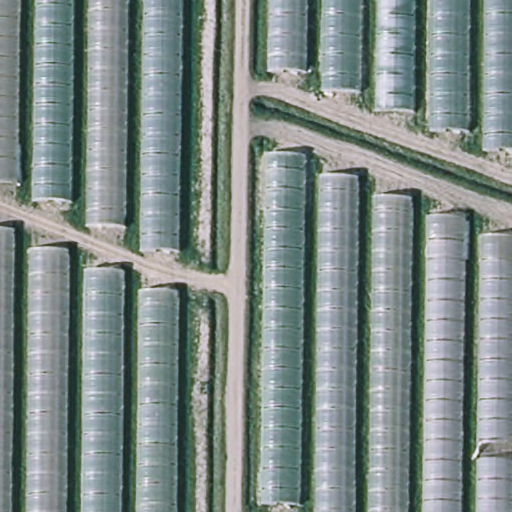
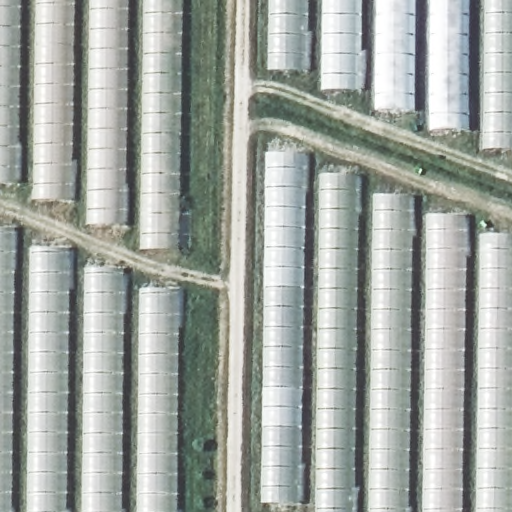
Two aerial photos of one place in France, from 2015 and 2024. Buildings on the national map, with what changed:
unchanged [(180,251),(142,250),(142,224),(88,224),(88,199),(34,199),(34,182),(0,182),(0,0),(183,0),(180,251)]
unchanged [(488,147),(486,127),(433,129),(432,109),(379,111),(378,90),(327,90),(326,69),(271,70),(272,0),(512,0),(512,147),(488,147)]
unchanged [(308,152),(308,174),(359,174),(360,192),(414,192),(414,212),(466,214),(467,235),(512,235),(512,512),(317,512),(317,503),(263,503),(271,152),(308,152)]
unchanged [(0,512),(0,226),(16,226),(16,249),(71,249),(71,267),(124,267),(124,288),(179,288),(173,512),(0,512)]

